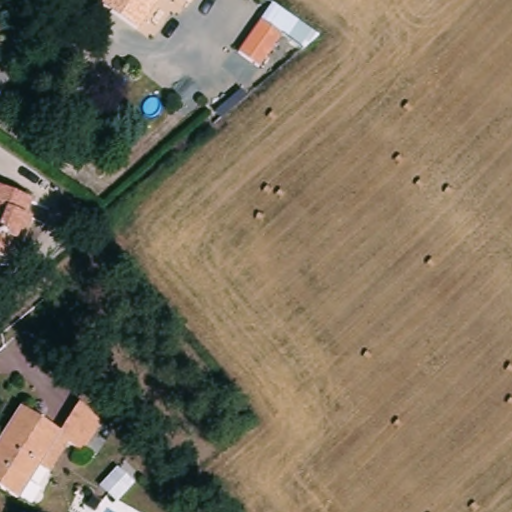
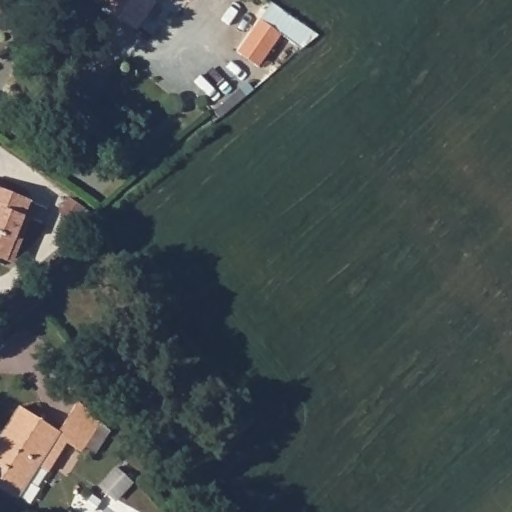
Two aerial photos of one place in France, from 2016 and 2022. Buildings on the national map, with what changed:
unchanged [(110,0),(149,0),(136,23),(134,26),(105,7),(110,0)]
unchanged [(278,23),(298,36),(276,70),(256,57),(278,23)]
unchanged [(32,201),(14,258),(0,252),(0,188),(32,201)]
unchanged [(25,410),(62,430),(78,400),(99,419),(85,449),(62,435),(27,502),(0,487),(0,459),(25,410)]

